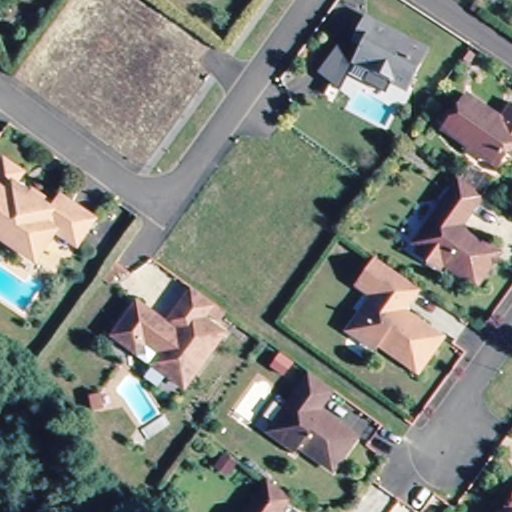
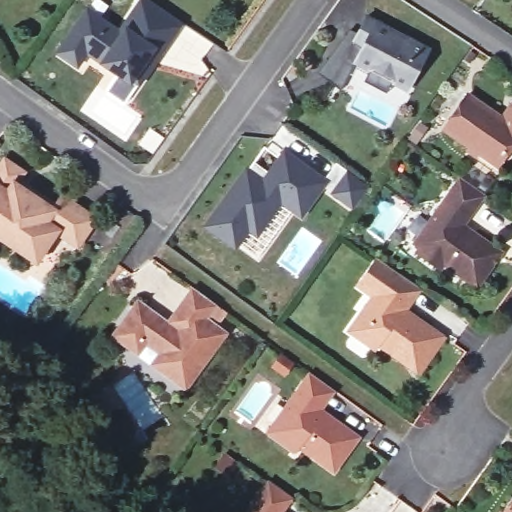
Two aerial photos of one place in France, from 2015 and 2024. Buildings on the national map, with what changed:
new [(79,64),(60,51),(89,10),(121,32),(144,0),(152,0),(183,21),(161,53),(155,61),(138,85),(126,104),(107,90),(120,72),(88,50),(79,64)]
unchanged [(355,62),(364,45),(355,41),(358,34),(368,16),(430,49),(408,90),(392,82),(371,71),(355,62)]
unchanged [(494,167),(441,129),(465,96),(497,119),(508,104),(512,107),(512,142),(494,167)]
unchanged [(507,151),(512,143),(512,155),(507,151)]
new [(324,182),(337,164),(348,172),(370,188),(355,209),(333,193),(323,186),(302,215),(282,200),(258,234),(249,228),(236,246),(208,226),(248,172),(254,163),(271,174),(285,154),(324,182)]
unchanged [(0,238),(0,169),(5,162),(23,174),(15,185),(31,197),(34,192),(55,207),(61,198),(96,222),(78,248),(56,233),(44,250),(36,262),(1,238),(0,238)]
unchanged [(418,251),(421,247),(415,242),(462,178),(464,180),(483,194),(484,194),(466,218),(464,216),(457,217),(455,221),(499,253),(474,286),(441,261),(437,266),(418,251)]
unchanged [(421,373),(383,345),(379,350),(353,331),(358,323),(365,314),(377,297),(360,285),(379,258),(392,267),(415,284),(425,291),(409,313),(445,339),(421,373)]
unchanged [(189,383),(184,383),(154,361),(161,350),(148,340),(145,344),(133,346),(118,334),(116,330),(136,303),(145,302),(170,320),(196,286),(227,308),(228,310),(221,320),(210,311),(207,315),(228,330),(189,383)]
unchanged [(265,429),(268,424),(308,371),(329,387),(330,388),(320,400),(314,407),(352,436),(328,468),(295,444),(292,449),(265,429)]
unchanged [(298,497),(287,512),(250,512),(260,498),(274,479),(298,497)]
unchanged [(512,494),(512,512),(499,512),(512,494)]

